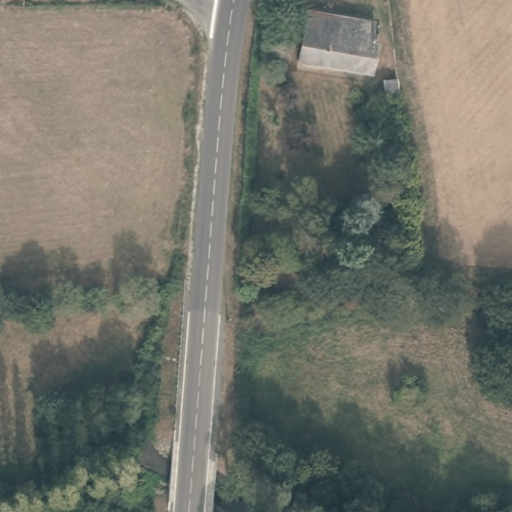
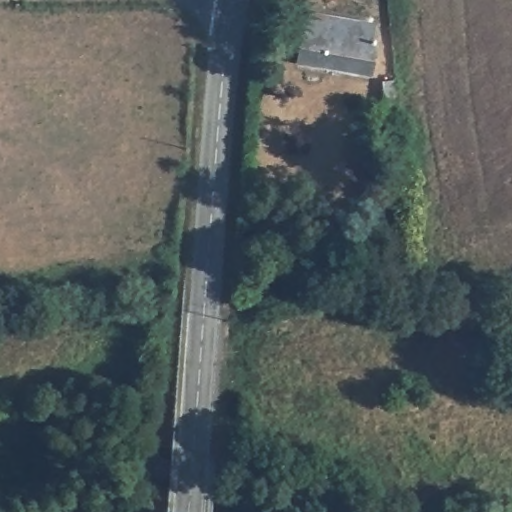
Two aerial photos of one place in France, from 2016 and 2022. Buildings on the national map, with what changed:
unchanged [(298,59),(309,10),(373,22),(374,32),(379,34),(373,72),(298,59)]
unchanged [(386,102),(384,79),(397,78),(399,101),(386,102)]

